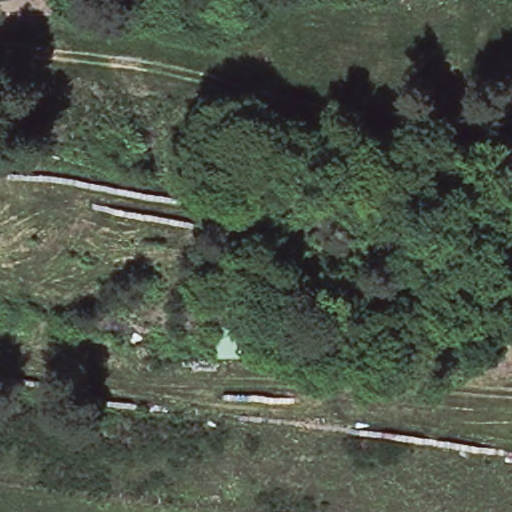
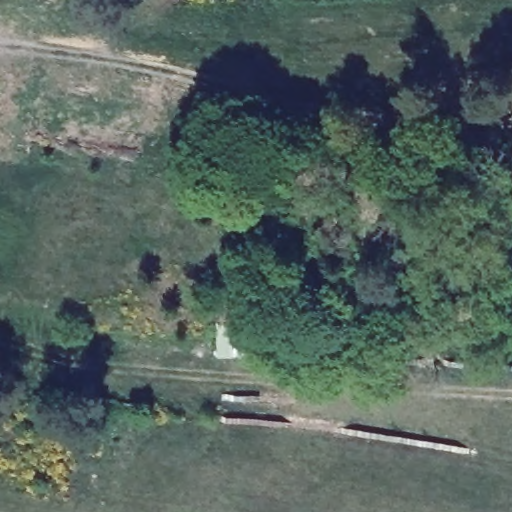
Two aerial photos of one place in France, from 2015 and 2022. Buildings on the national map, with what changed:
unchanged [(215,328),(246,328),(243,360),(214,361),(215,328)]

